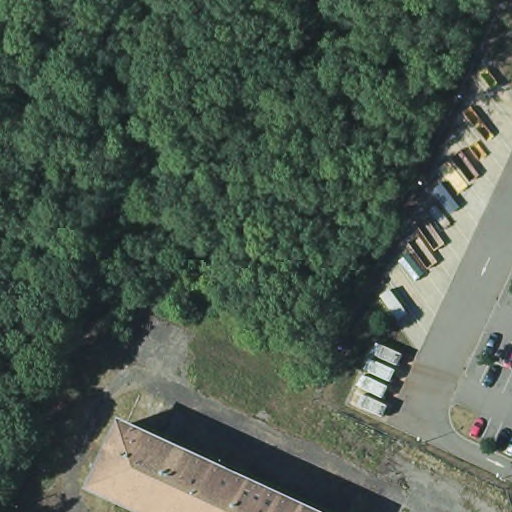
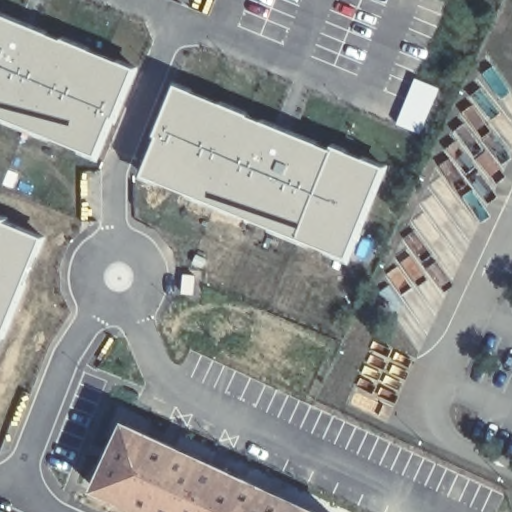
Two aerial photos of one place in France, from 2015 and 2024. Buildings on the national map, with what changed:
new [(133,67),(95,151),(0,112),(0,10),(133,67)]
new [(386,172),(349,259),(143,175),(178,83),(386,172)]
new [(44,232),(0,339),(0,215),(44,232)]
unchanged [(129,422),(320,512),(136,512),(96,493),(129,422)]
new [(5,509),(3,512),(0,512),(0,507),(5,509)]

